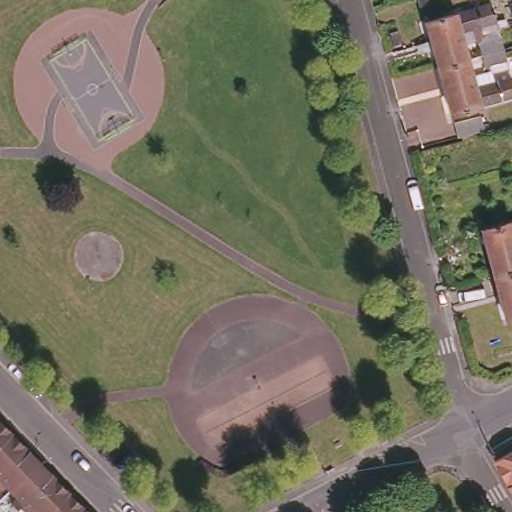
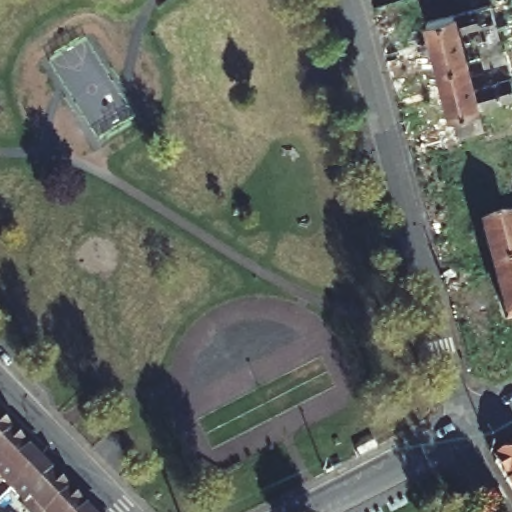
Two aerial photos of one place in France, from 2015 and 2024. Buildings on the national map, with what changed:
unchanged [(434,67),(422,22),(485,5),(490,21),(453,31),(460,59),(434,67)]
unchanged [(505,61),(482,66),(480,55),(477,45),(499,38),(502,49),(505,61)]
unchanged [(469,90),(505,81),(510,98),(446,114),(434,67),(460,59),(469,90)]
unchanged [(482,229),(512,221),(512,270),(495,275),(482,229)]
unchanged [(495,275),(512,270),(512,318),(506,319),(495,275)]
unchanged [(23,436),(0,458),(0,411),(23,436)]
unchanged [(52,466),(25,492),(11,476),(9,479),(0,469),(0,458),(23,436),(52,466)]
unchanged [(512,457),(512,495),(495,467),(512,457)]
unchanged [(80,495),(62,512),(42,512),(37,507),(38,506),(25,492),(52,466),(80,495)]
unchanged [(97,512),(62,512),(80,495),(97,512)]

